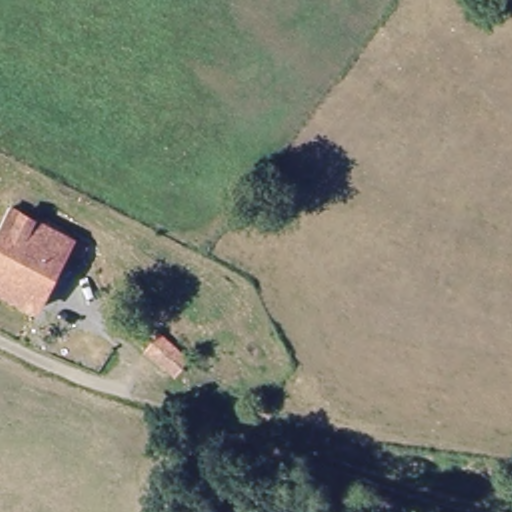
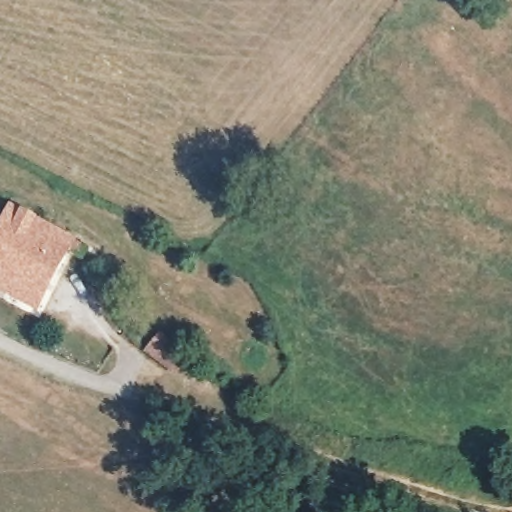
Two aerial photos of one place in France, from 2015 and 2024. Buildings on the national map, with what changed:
unchanged [(0,294),(0,211),(2,208),(70,246),(36,312),(0,294)]

